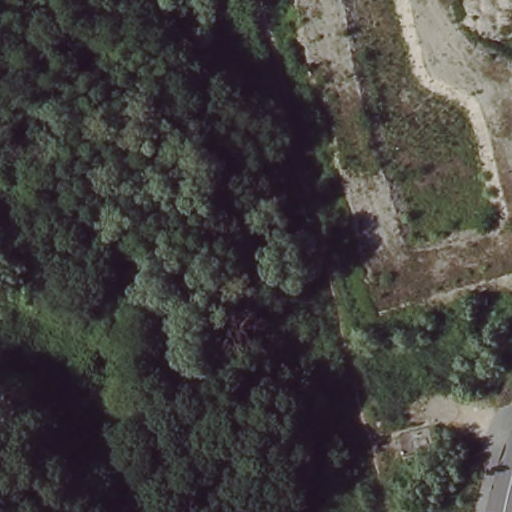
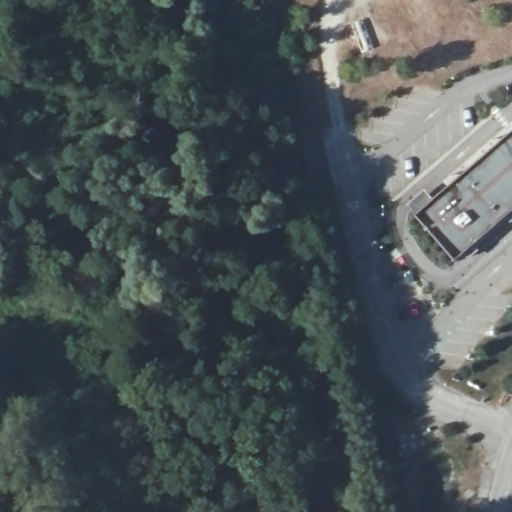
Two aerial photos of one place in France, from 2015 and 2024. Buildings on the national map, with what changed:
new [(425,189),(434,199),(512,130),(512,220),(510,223),(505,217),(474,244),(479,249),(469,259),(463,253),(455,260),(416,214),(408,204),(425,189)]
new [(390,288),(388,276),(411,270),(414,282),(390,288)]

